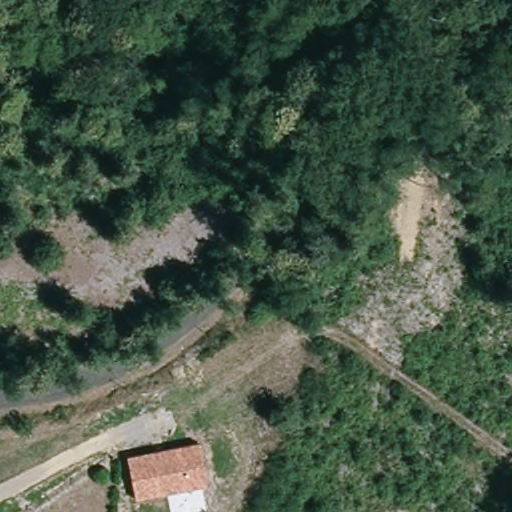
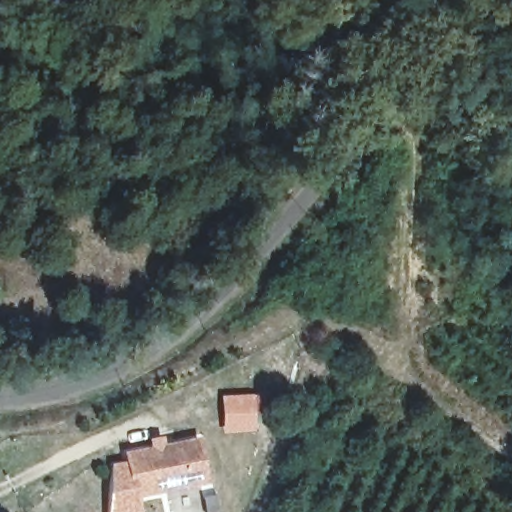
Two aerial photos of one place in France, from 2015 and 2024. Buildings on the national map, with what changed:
new [(223,433),(221,397),(254,394),(265,395),(266,415),(254,416),(254,432),(223,433)]
unchanged [(198,439),(207,482),(135,498),(125,453),(198,439)]

